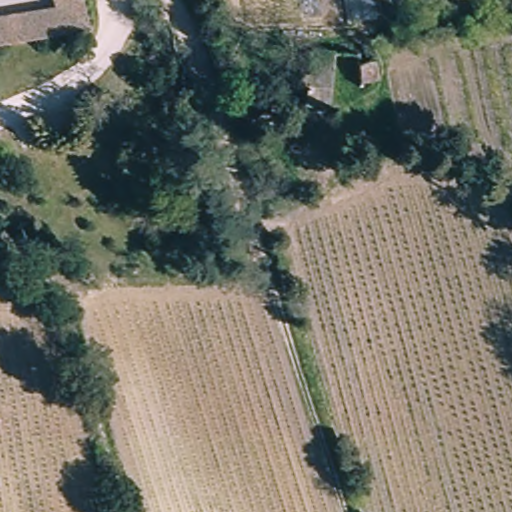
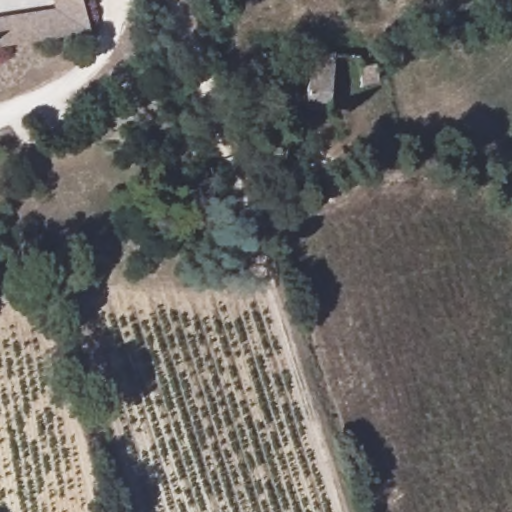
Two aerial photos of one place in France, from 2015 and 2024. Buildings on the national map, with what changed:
unchanged [(52,0),(85,0),(92,29),(0,45),(0,13),(53,4),(52,0)]
unchanged [(332,56),(333,68),(336,104),(314,107),(308,57),(332,56)]
unchanged [(363,81),(362,63),(376,61),(378,80),(363,81)]

